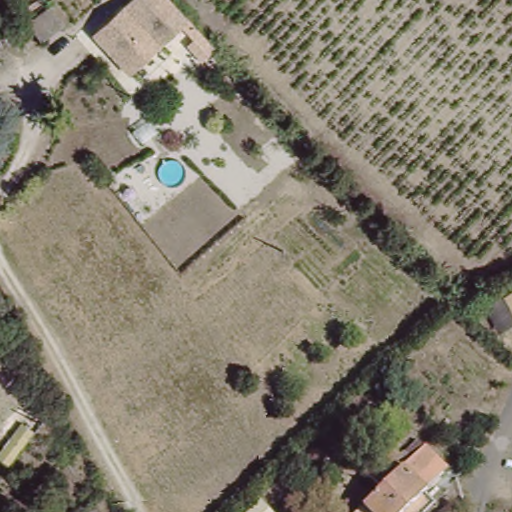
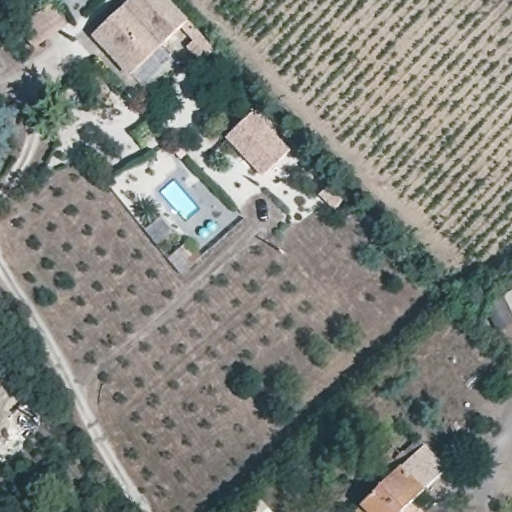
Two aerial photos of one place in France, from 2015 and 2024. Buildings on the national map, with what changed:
unchanged [(162,0),(141,21),(133,13),(119,27),(126,34),(120,40),(125,45),(113,56),(89,32),(123,1),(124,0),(162,0)]
unchanged [(113,56),(125,45),(120,40),(126,34),(119,27),(133,13),(141,21),(162,0),(167,0),(184,18),(160,41),(126,71),(113,56)]
unchanged [(189,23),(212,47),(206,54),(181,30),(189,23)]
new [(291,151),(264,178),(228,139),(255,113),(291,151)]
unchanged [(512,332),(502,338),(486,307),(512,293),(512,332)]
unchanged [(401,468),(424,446),(447,468),(424,491),(401,468)]
unchanged [(403,512),(370,512),(363,505),(401,468),(424,491),(403,512)]
unchanged [(363,505),(370,512),(357,512),(363,505)]

